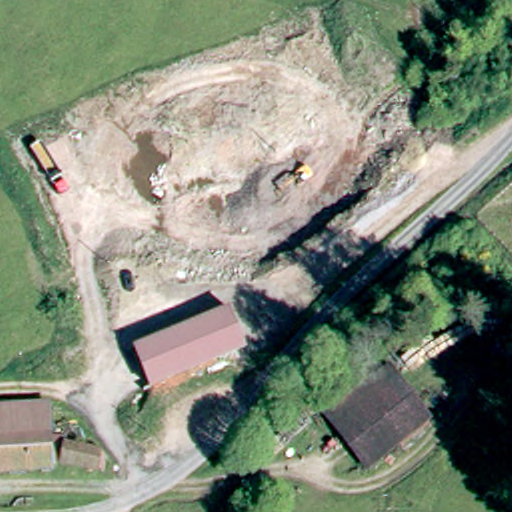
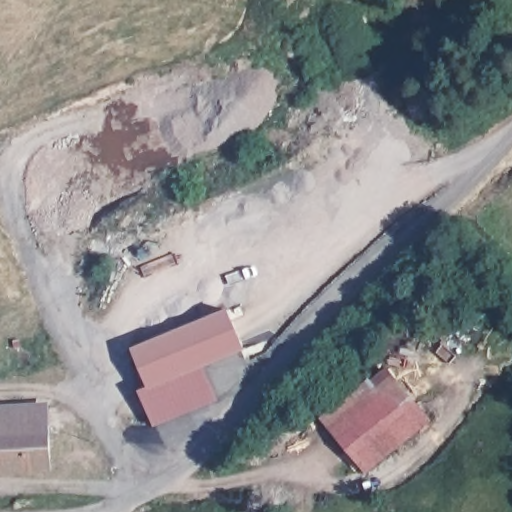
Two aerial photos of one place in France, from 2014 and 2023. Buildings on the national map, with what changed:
unchanged [(145,383),(128,345),(222,308),(237,347),(145,383)]
new [(218,399),(154,425),(137,385),(145,383),(203,360),(218,399)]
unchanged [(323,410),(383,362),(425,414),(398,436),(392,431),(362,457),(323,410)]
unchanged [(9,455),(0,456),(0,398),(31,394),(33,408),(36,426),(63,428),(63,433),(96,436),(97,451),(98,460),(63,455),(42,452),(43,472),(10,472),(9,455)]

